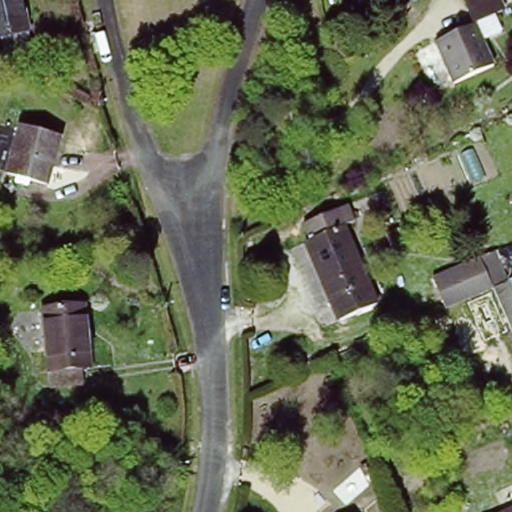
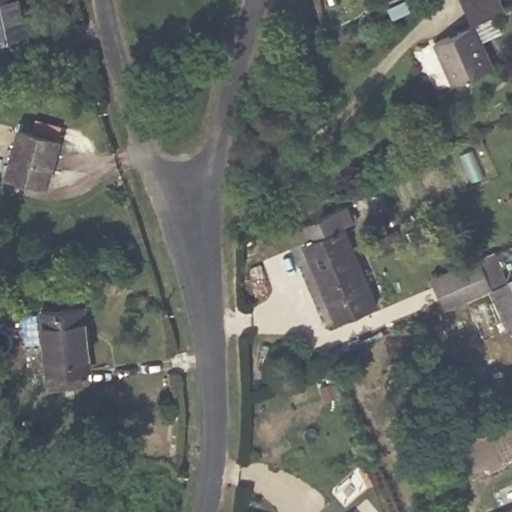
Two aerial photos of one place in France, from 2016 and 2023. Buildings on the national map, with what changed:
unchanged [(0,44),(0,0),(26,0),(33,39),(0,44)]
unchanged [(465,9),(485,0),(499,0),(504,10),(494,16),(501,31),(480,42),(490,64),(451,82),(435,41),(473,25),(465,9)]
unchanged [(461,0),(485,0),(465,9),(461,0)]
unchanged [(52,139),(42,182),(4,172),(15,129),(52,139)]
unchanged [(376,302),(339,319),(303,223),(344,205),(350,220),(344,223),(376,302)]
unchanged [(492,288),(443,308),(430,277),(480,257),(492,288)]
unchanged [(508,284),(512,283),(512,333),(510,334),(491,292),(508,284)]
unchanged [(85,299),(90,360),(81,361),(82,378),(51,381),(43,303),(85,299)]
unchanged [(512,512),(503,512),(512,508),(512,512)]

